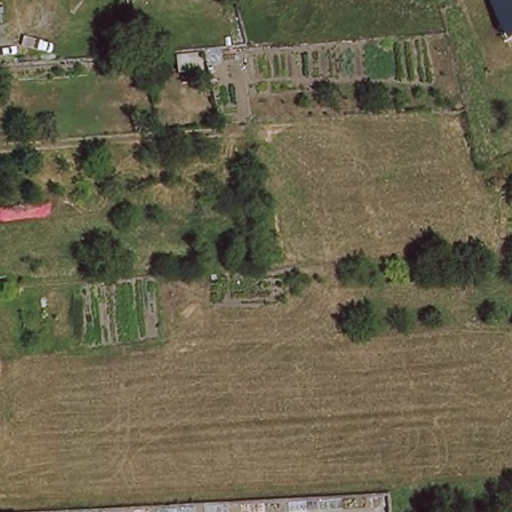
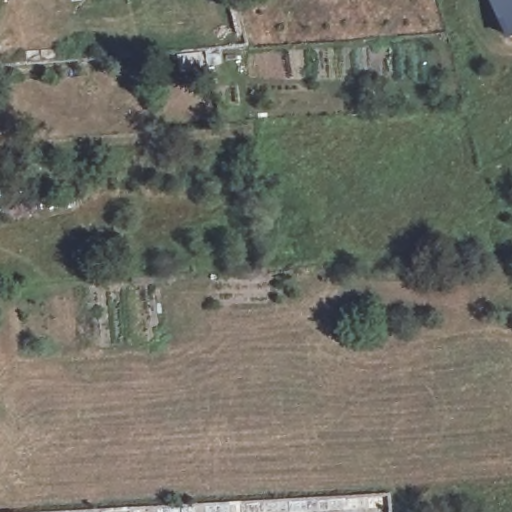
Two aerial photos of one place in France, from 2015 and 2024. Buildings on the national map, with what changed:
unchanged [(491,4),(490,0),(512,0),(512,35),(507,37),(491,4)]
unchanged [(202,50),(204,77),(175,79),(173,50),(202,50)]

